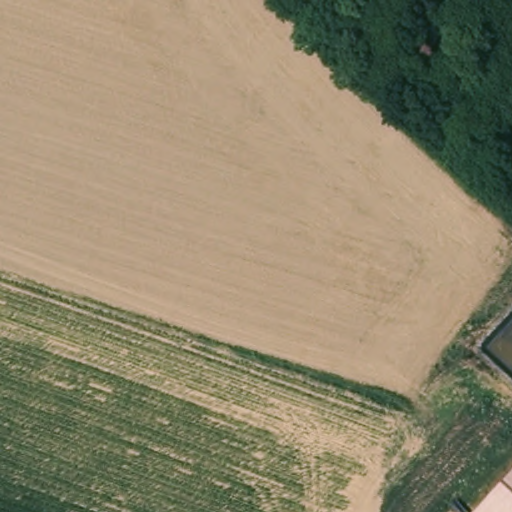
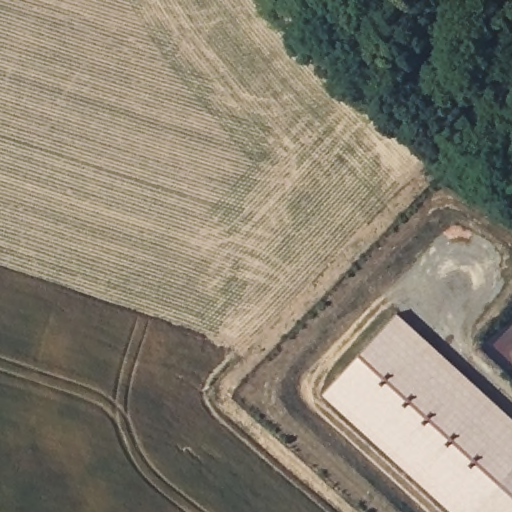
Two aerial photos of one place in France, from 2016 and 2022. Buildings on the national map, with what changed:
new [(323,396),(397,312),(512,417),(512,471),(473,512),(452,512),(323,396)]
unchanged [(512,471),(512,512),(473,512),(512,471)]

